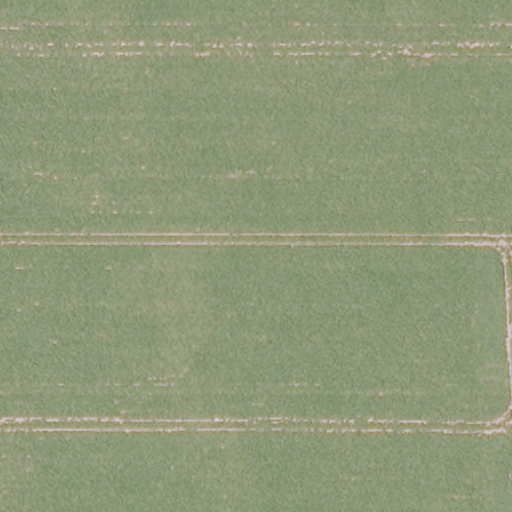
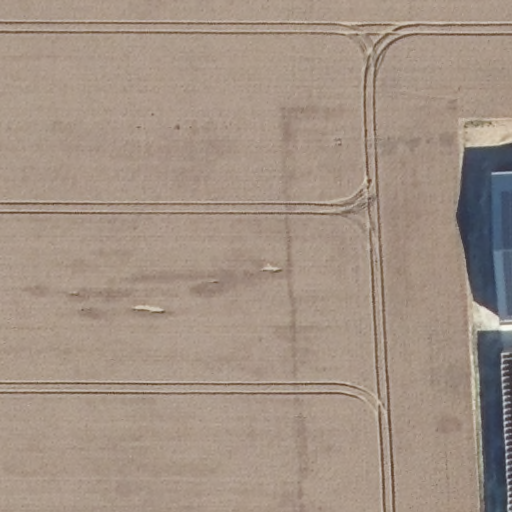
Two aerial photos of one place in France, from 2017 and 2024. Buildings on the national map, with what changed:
new [(504,319),(497,168),(512,167),(512,319),(504,319)]

